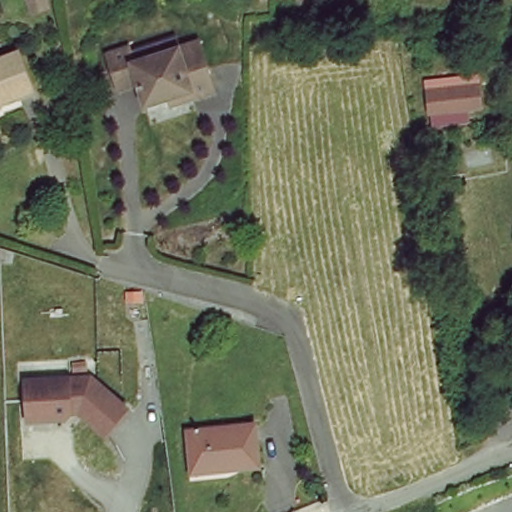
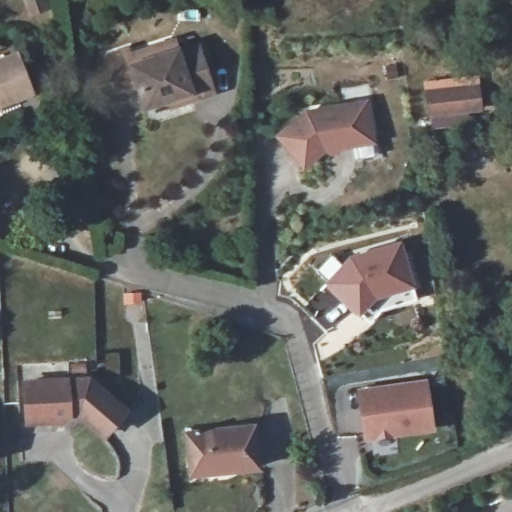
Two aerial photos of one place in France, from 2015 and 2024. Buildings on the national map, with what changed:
unchanged [(35,0),(52,0),(36,2),(35,0)]
unchanged [(168,100),(142,107),(136,85),(114,90),(104,57),(126,50),(129,60),(173,46),(177,58),(196,52),(209,102),(191,107),(172,112),(168,100)]
unchanged [(16,56),(30,95),(0,107),(0,61),(16,56)]
unchanged [(425,94),(479,89),(482,110),(429,117),(425,94)]
new [(304,109),(368,98),(374,144),(337,150),(338,152),(326,154),(325,150),(301,169),(274,135),(304,109)]
new [(347,256),(399,240),(413,286),(380,295),(358,319),(321,286),(347,256)]
unchanged [(24,403),(24,375),(88,373),(122,405),(99,430),(75,407),(75,403),(67,403),(62,412),(48,413),(24,413),(24,403)]
new [(357,387),(427,377),(434,430),(364,440),(357,387)]
unchanged [(261,467),(194,476),(189,431),(255,422),(261,467)]

